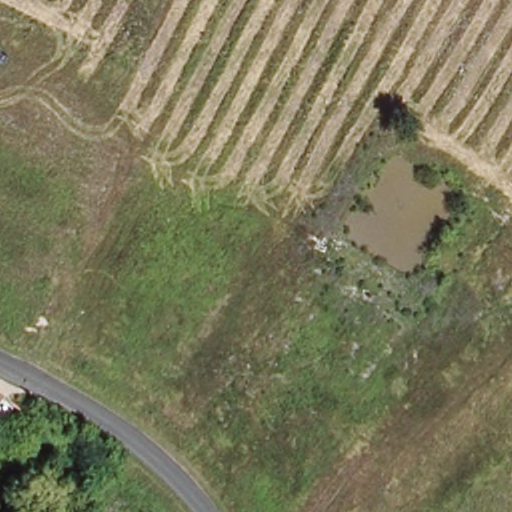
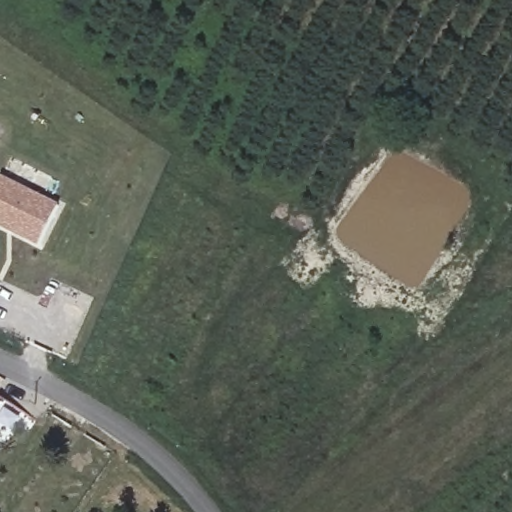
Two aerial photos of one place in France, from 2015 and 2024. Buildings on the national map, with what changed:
new [(37,245),(0,225),(0,177),(57,207),(37,245)]

